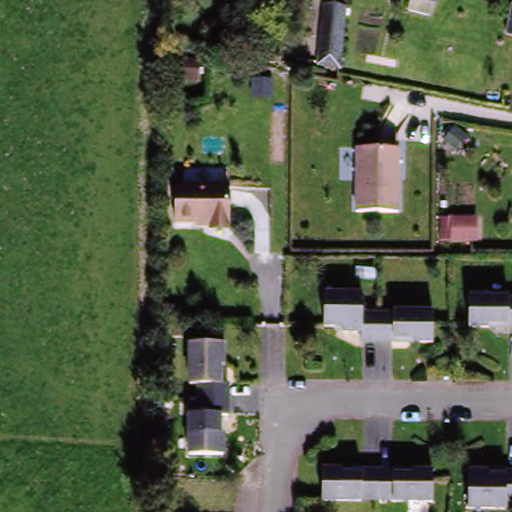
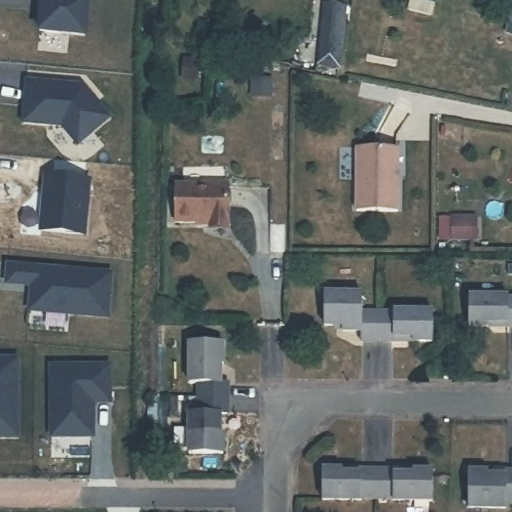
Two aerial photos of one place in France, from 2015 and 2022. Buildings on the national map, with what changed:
new [(95,38),(49,33),(52,0),(98,0),(95,38)]
unchanged [(342,69),(315,65),(312,16),(339,14),(342,69)]
unchanged [(512,15),(512,29),(509,28),(512,15)]
new [(32,80),(89,85),(117,117),(89,142),(82,141),(69,126),(29,123),(32,80)]
unchanged [(511,102),(512,99),(512,102),(511,102)]
unchanged [(354,213),(354,149),(390,150),(395,150),(395,181),(393,213),(354,213)]
new [(97,179),(93,233),(50,229),(52,203),(57,204),(57,193),(52,193),(53,175),(97,179)]
unchanged [(226,232),(207,233),(207,229),(176,230),(175,191),(224,191),(226,232)]
new [(43,311),(45,286),(19,284),(20,264),(126,272),(123,317),(43,311)]
unchanged [(356,342),(355,332),(337,331),(337,327),(320,327),(320,294),(356,294),(357,313),(372,314),(371,341),(356,342)]
unchanged [(505,328),(505,324),(487,324),(486,329),(466,330),(467,298),(512,299),(512,328),(505,328)]
unchanged [(372,314),(387,314),(386,311),(427,313),(427,343),(407,343),(407,338),(389,338),(389,343),(371,341),(372,314)]
unchanged [(205,387),(197,386),(198,345),(230,346),(232,367),(228,366),(227,385),(236,386),(236,402),(205,401),(205,387)]
new [(0,355),(31,356),(30,434),(0,434),(0,355)]
new [(64,363),(122,363),(122,400),(106,400),(106,434),(64,434),(64,363)]
unchanged [(236,402),(234,418),(227,418),(226,437),(231,437),(229,456),(195,456),(195,416),(206,416),(205,401),(236,402)]
unchanged [(370,501),(317,502),(317,471),(336,472),(337,476),(354,477),(356,472),(370,473),(370,501)]
unchanged [(387,472),(387,477),(405,477),(405,472),(425,473),(424,504),(370,501),(370,473),(387,472)]
unchanged [(512,506),(495,506),(495,511),(459,511),(461,473),(479,473),(479,478),(495,479),(497,473),(512,474),(512,506)]

